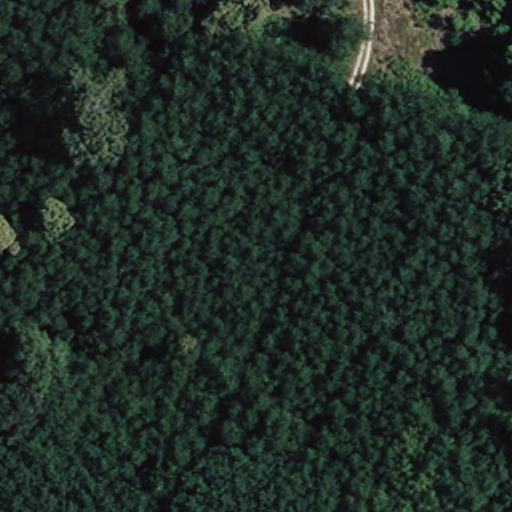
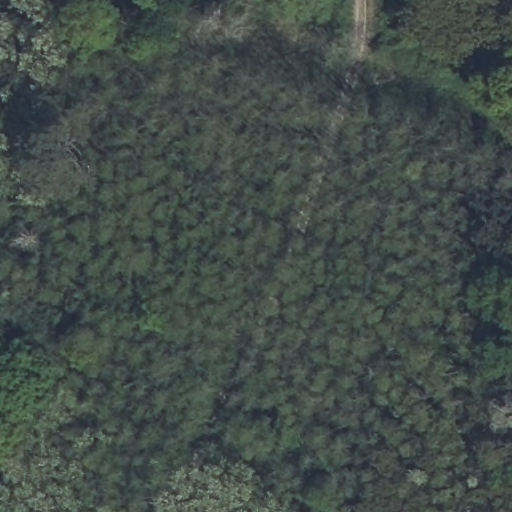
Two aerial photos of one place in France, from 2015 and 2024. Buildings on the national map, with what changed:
[]

